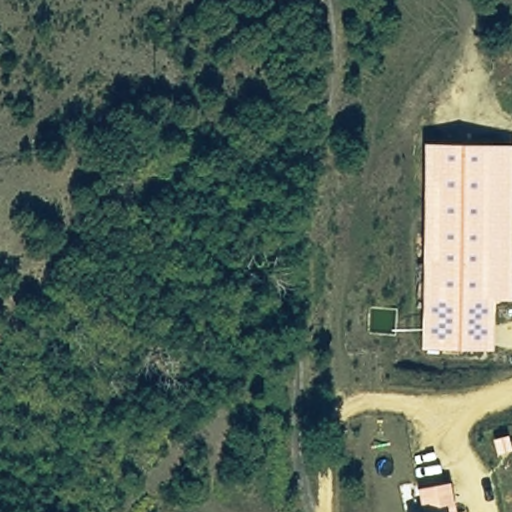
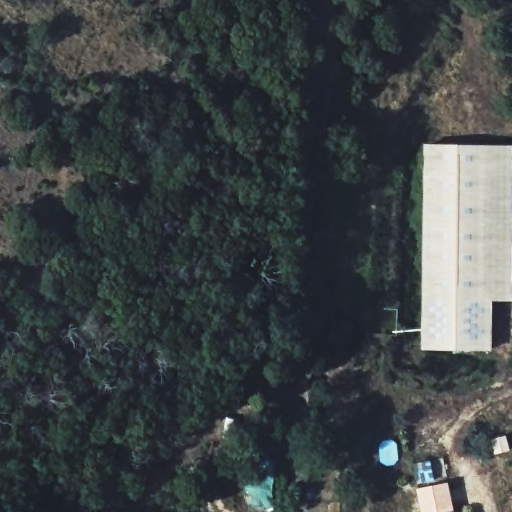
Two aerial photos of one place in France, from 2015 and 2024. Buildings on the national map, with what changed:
unchanged [(512,149),(512,301),(485,301),(486,350),(421,351),(420,282),(418,150),(512,149)]
unchanged [(454,512),(421,512),(416,487),(448,482),(454,512)]

